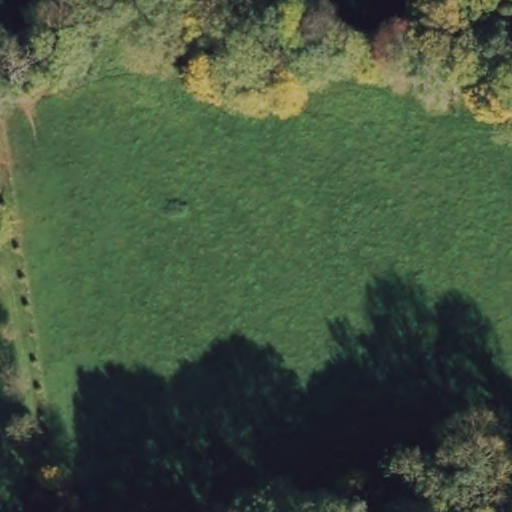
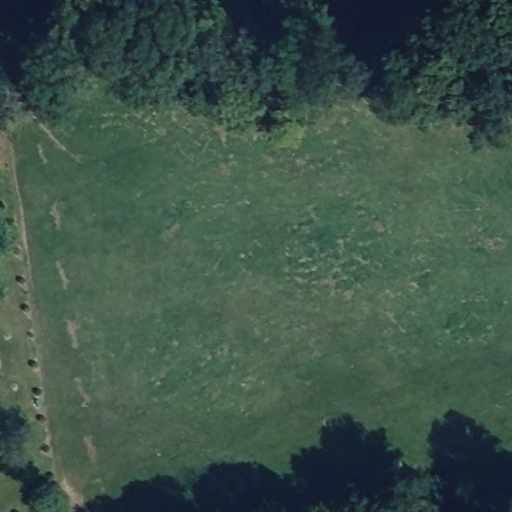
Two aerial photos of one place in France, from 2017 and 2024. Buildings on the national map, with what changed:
[]

